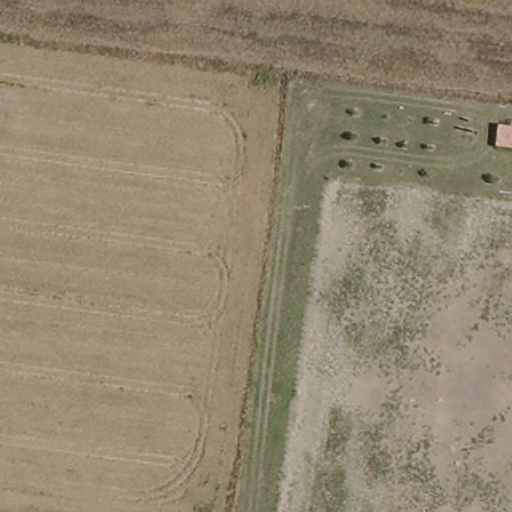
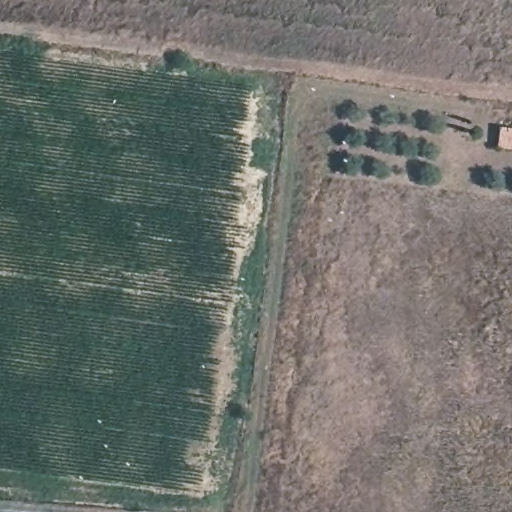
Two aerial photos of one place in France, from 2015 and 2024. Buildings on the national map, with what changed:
[]

